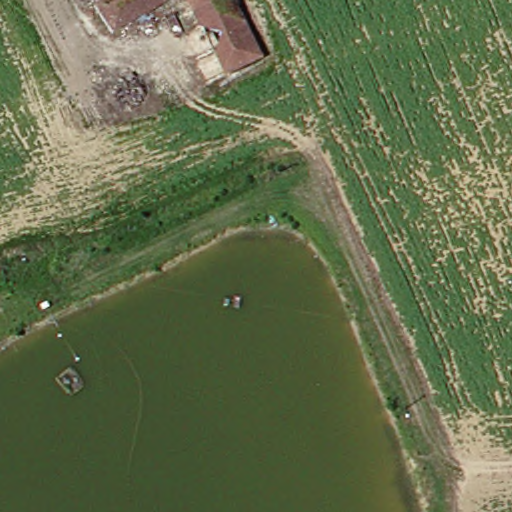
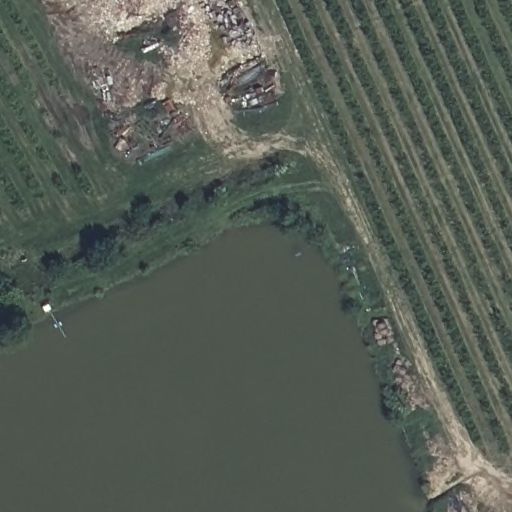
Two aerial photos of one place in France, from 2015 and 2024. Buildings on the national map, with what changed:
unchanged [(88,6),(97,0),(163,0),(107,36),(88,6)]
unchanged [(217,75),(188,9),(185,1),(189,0),(229,0),(255,59),(217,75)]

